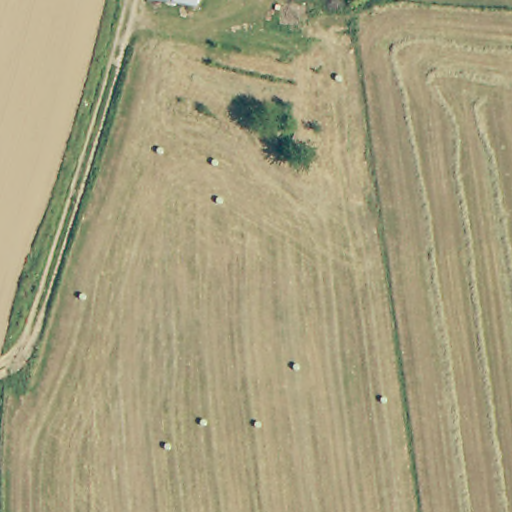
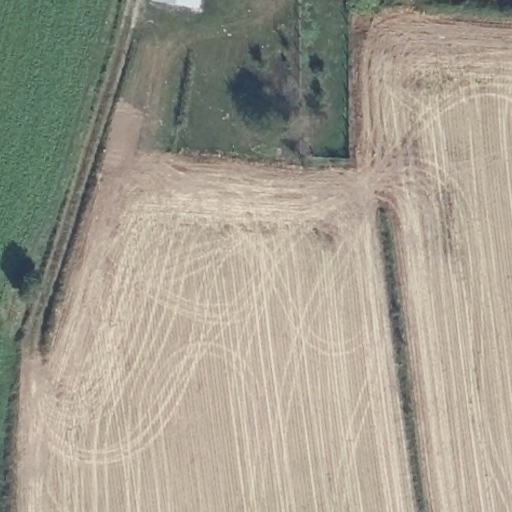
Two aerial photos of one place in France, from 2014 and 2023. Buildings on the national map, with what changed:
unchanged [(167,1),(162,0),(191,0),(191,4),(167,1)]

